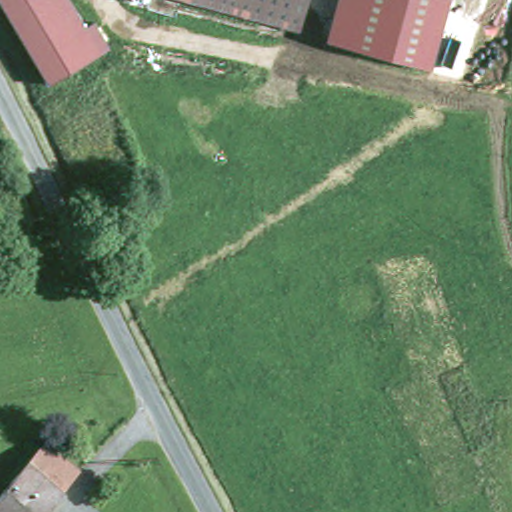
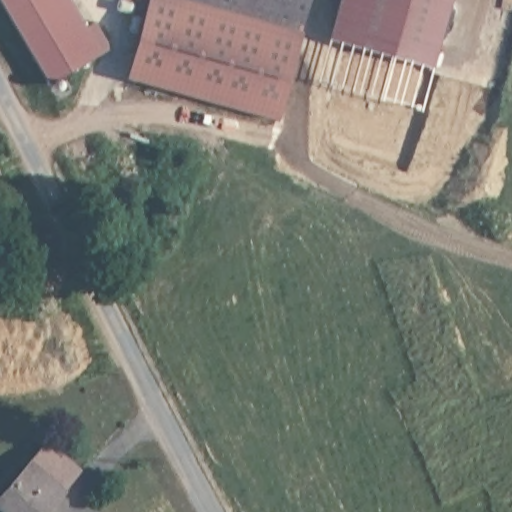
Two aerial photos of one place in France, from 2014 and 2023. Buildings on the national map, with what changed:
unchanged [(86,25),(93,22),(109,48),(50,82),(0,0),(71,0),(86,25)]
new [(277,120),(125,78),(147,0),(172,0),(301,26),(277,120)]
unchanged [(309,27),(172,0),(315,0),(309,27)]
unchanged [(432,71),(328,40),(338,0),(450,0),(432,71)]
unchanged [(50,512),(0,512),(0,507),(37,462),(69,487),(50,512)]

